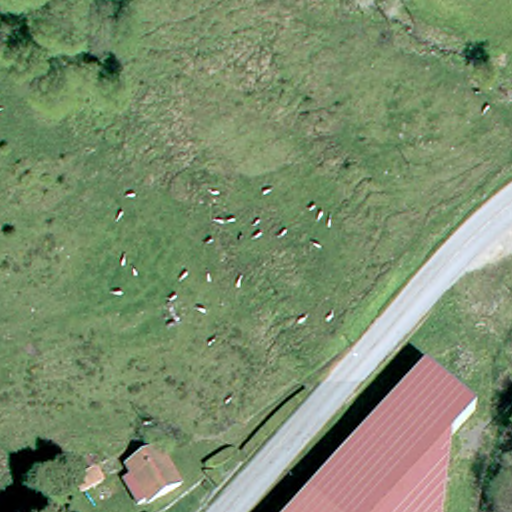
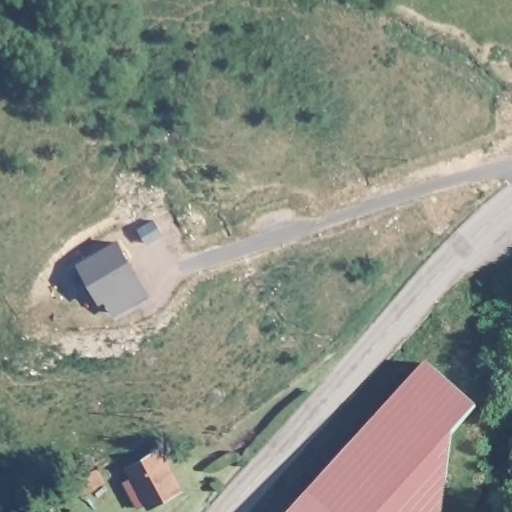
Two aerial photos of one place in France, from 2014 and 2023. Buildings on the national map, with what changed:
new [(116,240),(148,295),(112,315),(105,301),(100,303),(76,265),(116,240)]
unchanged [(355,457),(371,440),(438,367),(485,411),(453,446),(447,512),(305,512),(355,457)]
unchanged [(187,491),(155,510),(152,506),(142,511),(130,487),(139,480),(135,471),(165,453),(187,491)]
unchanged [(81,497),(73,487),(77,483),(68,470),(90,457),(106,482),(81,497)]
unchanged [(52,512),(22,512),(43,500),(52,512)]

